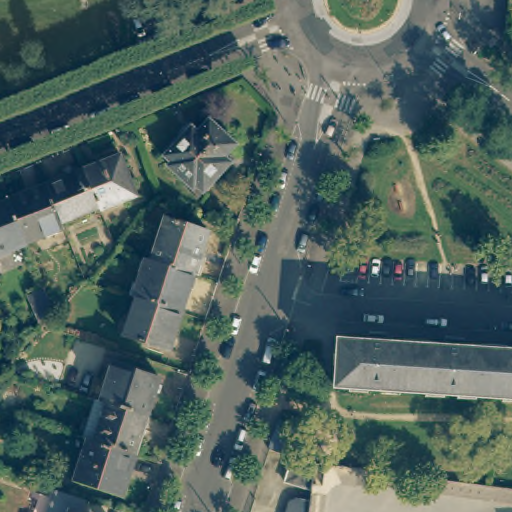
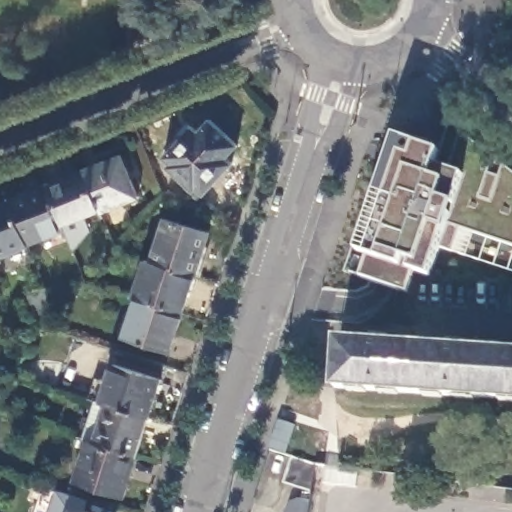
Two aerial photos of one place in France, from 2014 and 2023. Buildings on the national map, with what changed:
unchanged [(196,187),(193,191),(167,167),(170,164),(163,157),(191,127),(197,133),(208,120),(235,146),(224,159),(230,164),(203,194),(196,187)]
new [(438,248),(429,275),(415,270),(414,271),(408,292),(362,276),(361,277),(351,273),(357,257),(358,251),(396,137),(441,152),(449,122),(512,172),(512,271),(441,247),(438,248)]
unchanged [(99,205),(83,166),(120,151),(137,192),(100,208),(99,205)]
unchanged [(99,205),(61,220),(46,181),(83,166),(99,205)]
unchanged [(27,239),(9,196),(46,181),(61,220),(63,224),(27,239)]
unchanged [(27,239),(28,242),(0,252),(0,200),(9,196),(27,239)]
unchanged [(152,261),(165,219),(208,233),(194,275),(152,261)]
unchanged [(152,261),(194,275),(182,314),(135,299),(133,298),(146,259),(152,261)]
unchanged [(44,326),(43,327),(29,296),(45,289),(55,314),(44,326)]
unchanged [(182,314),(170,351),(124,335),(135,299),(182,314)]
unchanged [(339,341),(369,344),(370,335),(386,336),(385,345),(445,349),(446,339),(462,341),(462,349),(512,353),(512,400),(336,389),(339,341)]
unchanged [(113,364),(160,380),(148,417),(101,402),(113,364)]
unchanged [(101,402),(148,417),(136,455),(88,440),(76,436),(83,417),(89,419),(97,400),(101,402)]
unchanged [(295,425),(286,454),(270,448),(279,419),(295,425)]
unchanged [(136,455),(123,496),(75,480),(88,440),(136,455)]
unchanged [(315,463),(311,490),(284,481),(292,456),(315,463)]
unchanged [(56,500),(68,504),(93,512),(52,512),(56,500)]

